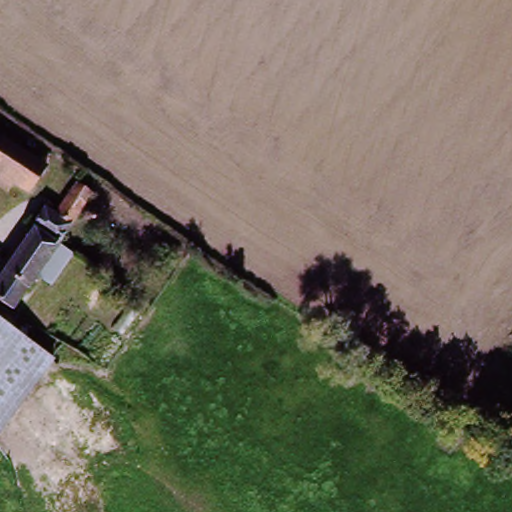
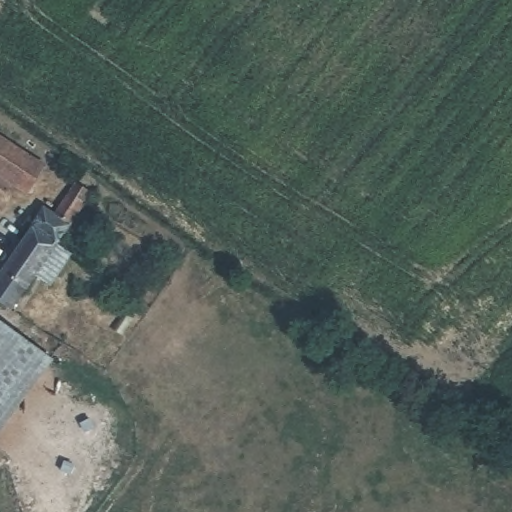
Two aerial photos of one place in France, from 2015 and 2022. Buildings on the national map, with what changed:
unchanged [(41,158),(35,168),(44,176),(28,200),(0,181),(0,131),(41,158)]
unchanged [(23,222),(33,213),(45,221),(74,178),(94,191),(11,314),(0,307),(0,289),(30,242),(26,236),(30,229),(23,222)]
unchanged [(48,363),(0,434),(0,330),(48,363)]

